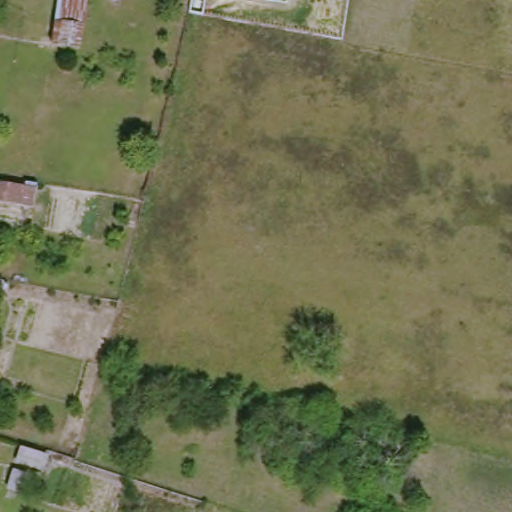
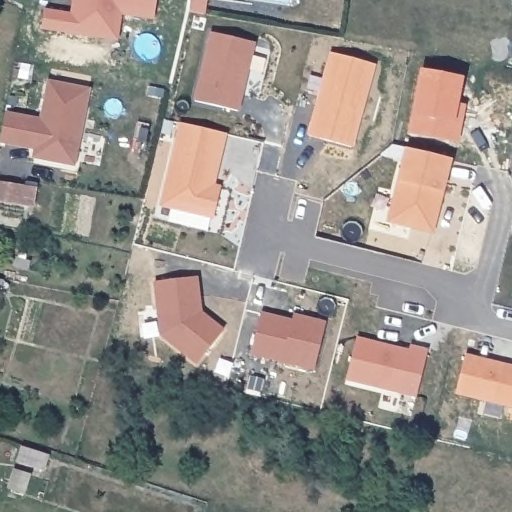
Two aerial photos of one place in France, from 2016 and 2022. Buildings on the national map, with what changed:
new [(72,14),(73,0),(156,0),(155,20),(122,15),(119,41),(42,30),(45,10),(72,14)]
demolished [(87,2),(80,49),(55,43),(64,0),(80,0),(87,2)]
new [(210,32),(253,42),(237,110),(193,100),(210,32)]
new [(41,121),(48,82),(90,90),(75,166),(37,159),(40,147),(30,145),(30,149),(0,143),(0,140),(5,114),(41,121)]
new [(217,195),(212,217),(160,204),(180,122),(223,132),(211,186),(219,187),(217,195)]
new [(405,147),(450,157),(442,191),(439,190),(435,202),(438,203),(432,231),(387,220),(405,147)]
unchanged [(0,202),(0,184),(32,188),(30,206),(0,202)]
new [(260,312),(301,322),(302,317),(325,322),(313,368),(250,353),(260,312)]
new [(408,351),(410,346),(427,350),(415,396),(345,378),(356,337),(408,351)]
new [(457,392),(465,356),(512,368),(512,407),(457,392)]
unchanged [(44,455),(40,469),(15,461),(18,447),(44,455)]
unchanged [(7,487),(12,470),(27,475),(22,492),(7,487)]

